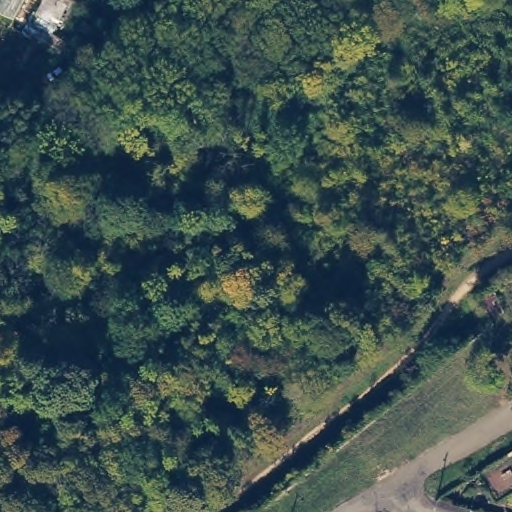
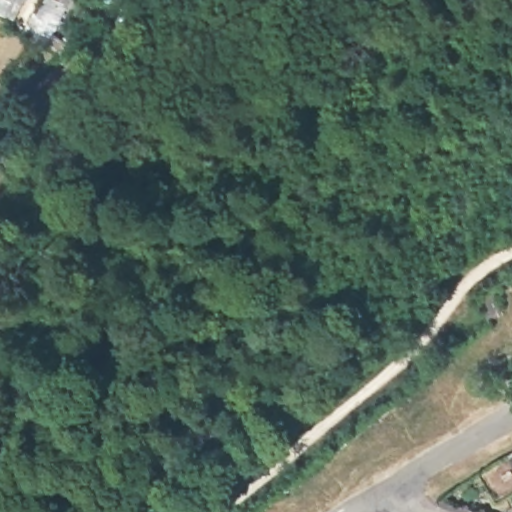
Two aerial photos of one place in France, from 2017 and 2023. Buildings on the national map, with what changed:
[]

